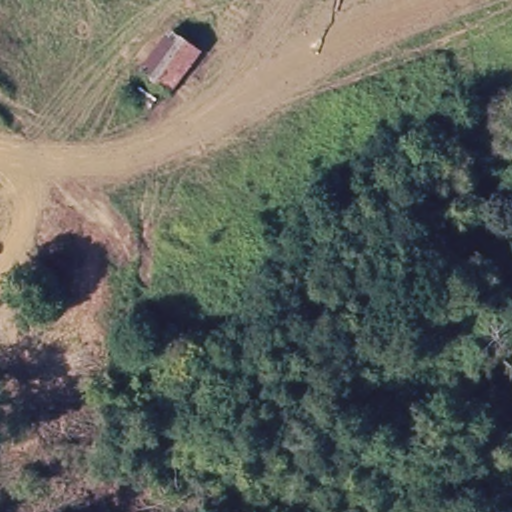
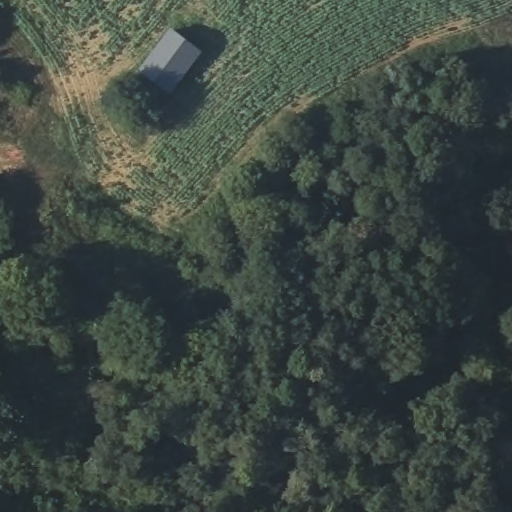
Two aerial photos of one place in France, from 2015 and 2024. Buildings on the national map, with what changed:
unchanged [(175,31),(209,53),(175,93),(143,71),(175,31)]

